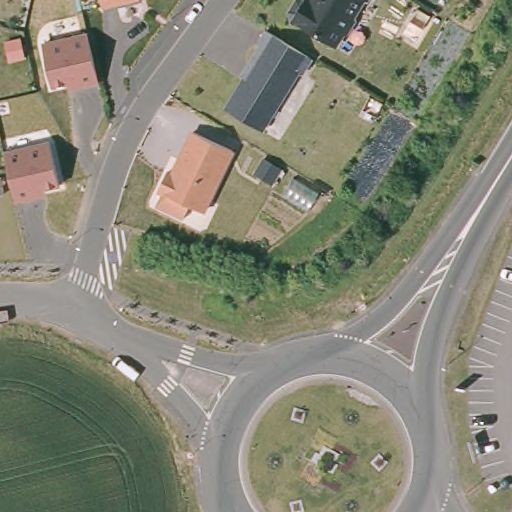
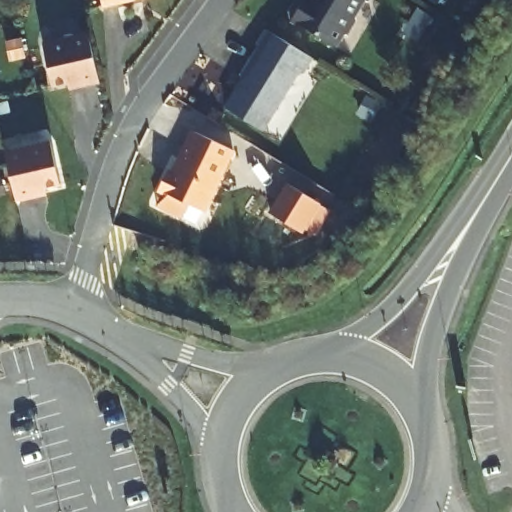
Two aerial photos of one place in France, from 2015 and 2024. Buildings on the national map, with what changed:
unchanged [(137,1),(103,9),(101,0),(136,0),(137,1)]
unchanged [(353,16),(355,22),(347,35),(341,36),(335,46),(334,47),(333,47),(292,22),(290,12),(297,0),(310,0),(362,0),(353,16)]
unchanged [(367,2),(362,0),(369,0),(367,2)]
unchanged [(53,87),(42,42),(87,31),(100,84),(71,91),(69,85),(53,87)]
unchanged [(307,56),(312,59),(303,74),(300,72),(262,132),(226,110),(245,78),(263,49),(258,46),(267,32),(307,56)]
unchanged [(158,209),(165,195),(158,191),(167,173),(175,177),(180,166),(180,163),(180,161),(180,159),(193,132),(232,152),(203,213),(190,207),(182,221),(158,209)]
unchanged [(47,196),(17,202),(5,151),(50,141),(62,187),(47,190),(47,196)]
new [(287,183),(322,204),(304,235),(269,213),(287,183)]

